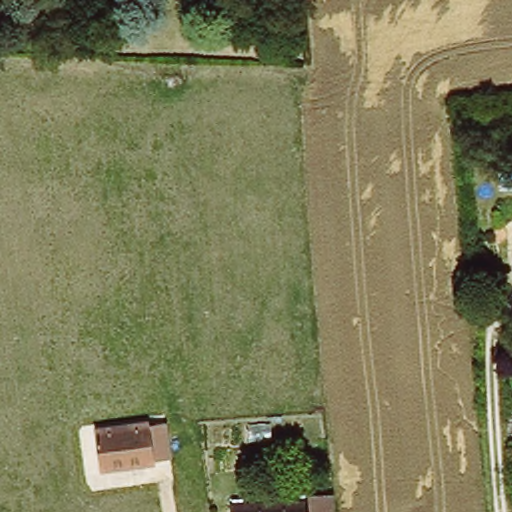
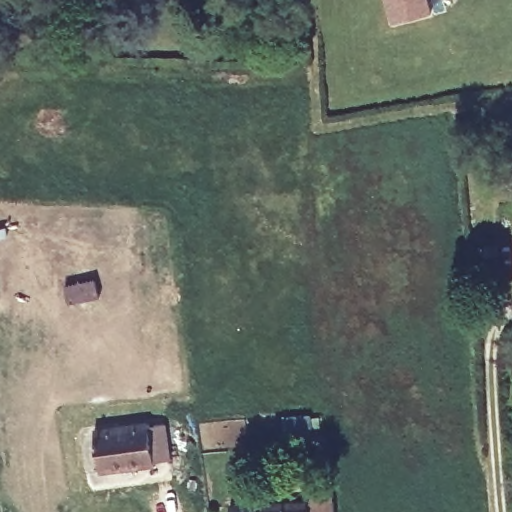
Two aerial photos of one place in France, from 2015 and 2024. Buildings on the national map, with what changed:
new [(433,11),(394,21),(388,0),(430,0),(433,11)]
unchanged [(168,423),(171,457),(159,459),(160,463),(102,471),(95,427),(147,420),(147,427),(168,423)]
unchanged [(313,512),(212,512),(212,507),(312,495),(313,512)]

